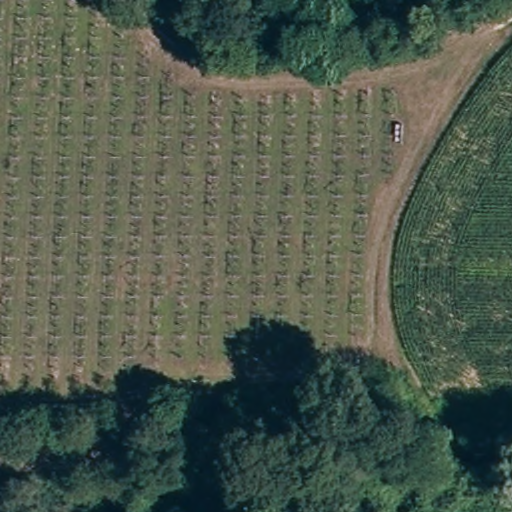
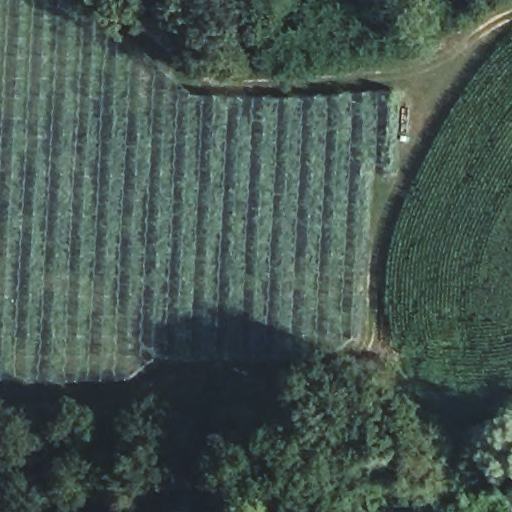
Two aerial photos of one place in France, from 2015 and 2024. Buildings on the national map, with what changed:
[]

